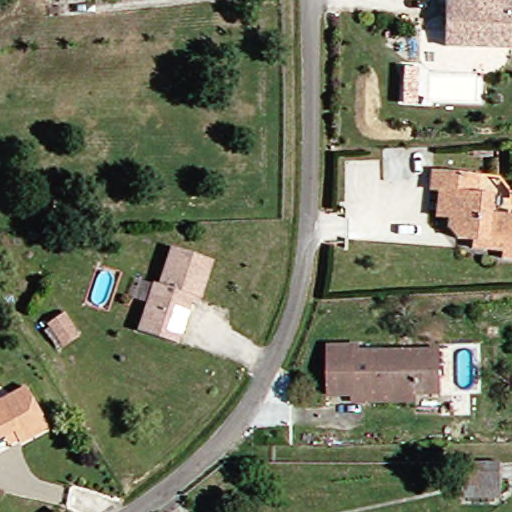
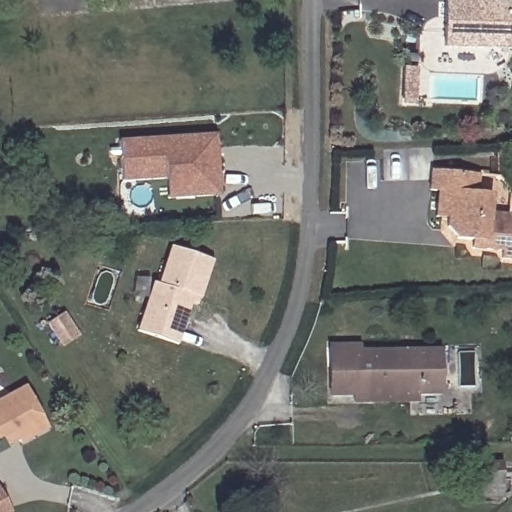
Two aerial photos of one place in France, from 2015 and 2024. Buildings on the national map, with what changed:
unchanged [(446,0),(479,0),(478,8),(512,9),(512,56),(445,54),(446,0)]
new [(172,177),(127,180),(125,140),(221,136),(222,151),(222,159),(224,195),(201,196),(173,197),(172,177)]
unchanged [(452,223),(452,212),(442,210),(446,187),(438,185),(438,171),(485,177),(501,180),(512,195),(512,259),(508,258),(507,254),(491,251),(478,249),(479,240),(464,239),(452,223)]
unchanged [(165,287),(177,250),(219,265),(206,302),(199,299),(182,345),(145,332),(161,287),(165,287)]
unchanged [(358,401),(357,392),(332,393),(332,346),(360,345),(361,350),(440,346),(442,389),(421,390),(421,398),(358,401)]
unchanged [(4,435),(0,436),(0,398),(27,383),(49,425),(22,440),(20,436),(8,442),(4,435)]
unchanged [(503,465),(505,495),(467,500),(465,467),(503,465)]
new [(13,512),(0,512),(0,488),(13,512)]

